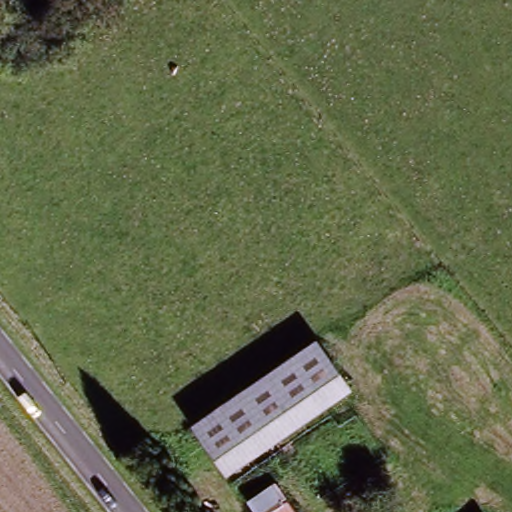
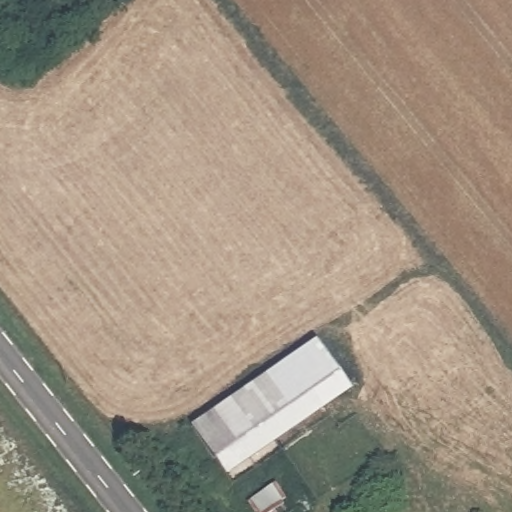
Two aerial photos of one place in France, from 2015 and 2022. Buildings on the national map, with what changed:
unchanged [(211,473),(191,439),(332,359),(352,393),(211,473)]
unchanged [(290,508),(285,512),(252,512),(245,503),(270,483),(290,508)]

